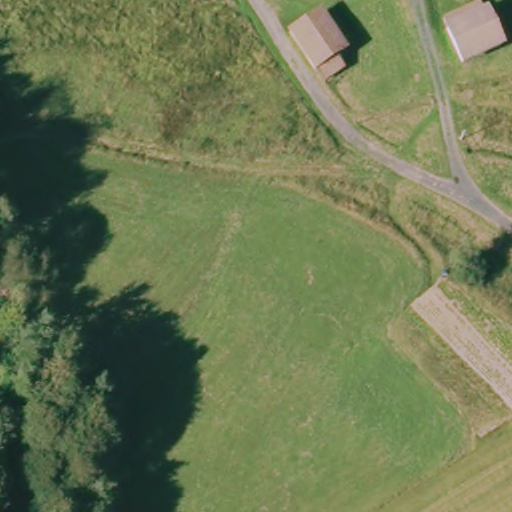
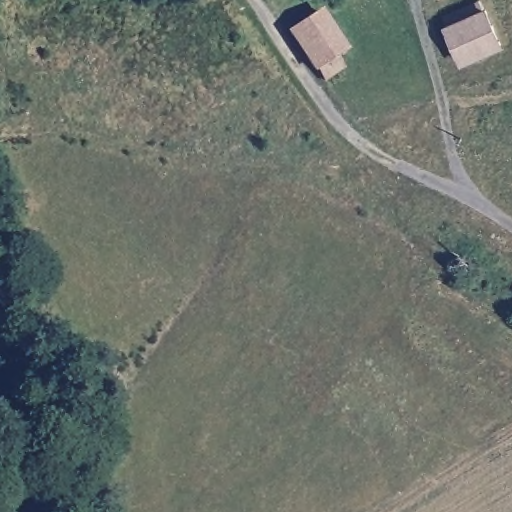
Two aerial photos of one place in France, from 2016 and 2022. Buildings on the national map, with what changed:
unchanged [(458,56),(450,16),(491,6),(500,45),(458,56)]
unchanged [(328,81),(318,70),(290,30),(321,8),(350,46),(338,54),(346,67),(328,81)]

